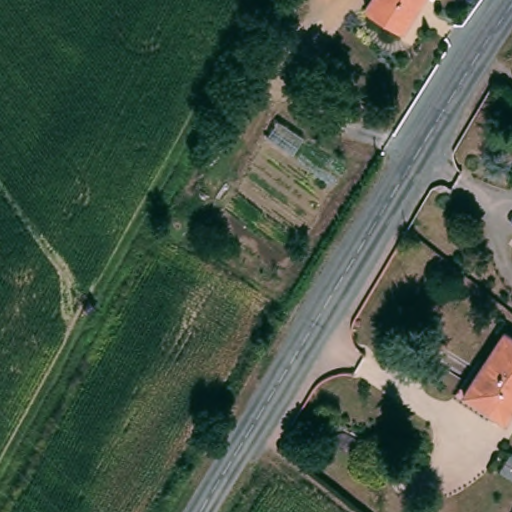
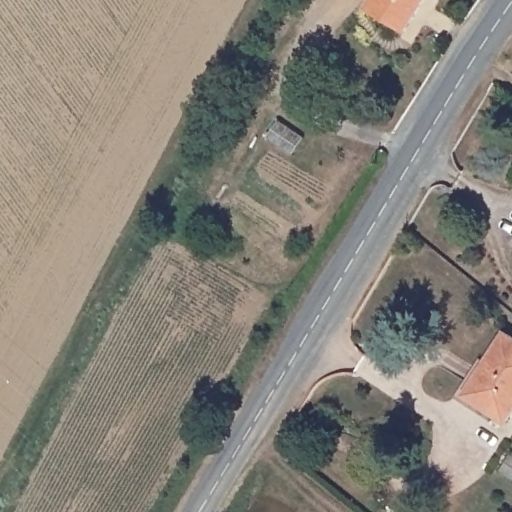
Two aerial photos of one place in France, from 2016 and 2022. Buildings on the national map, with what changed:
unchanged [(401,29),(364,6),(367,0),(418,0),(401,29)]
unchanged [(504,425),(463,398),(505,332),(512,337),(512,412),(504,425)]

